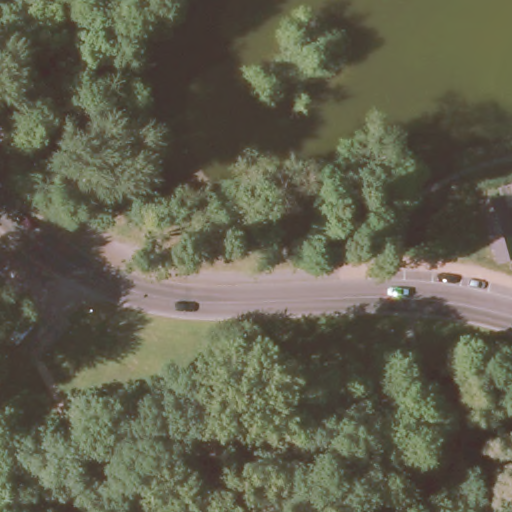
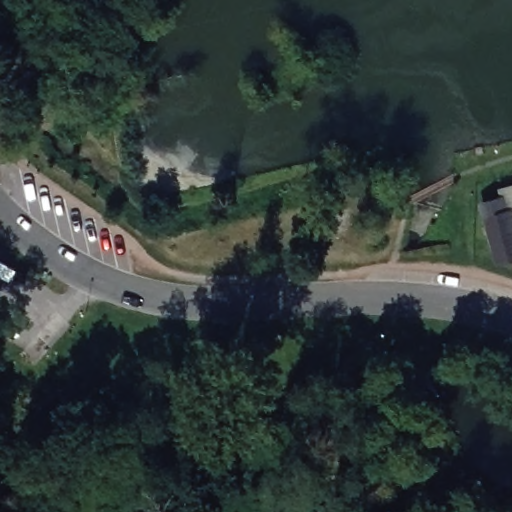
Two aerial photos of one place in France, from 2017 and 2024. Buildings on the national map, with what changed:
unchanged [(500,194),(497,188),(512,184),(512,263),(496,266),(478,199),(500,194)]
unchanged [(386,221),(388,238),(377,239),(376,222),(386,221)]
unchanged [(341,406),(341,422),(332,422),(333,406),(341,406)]

